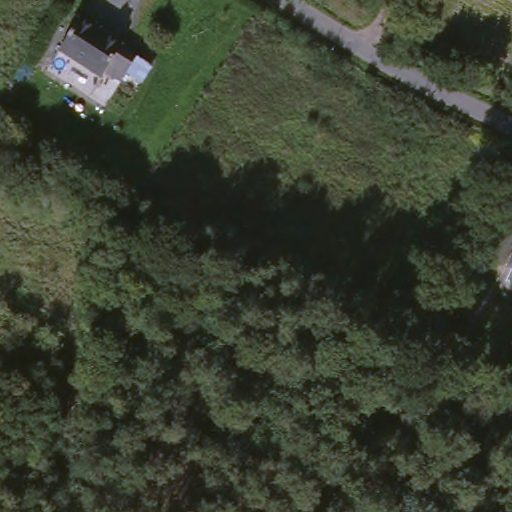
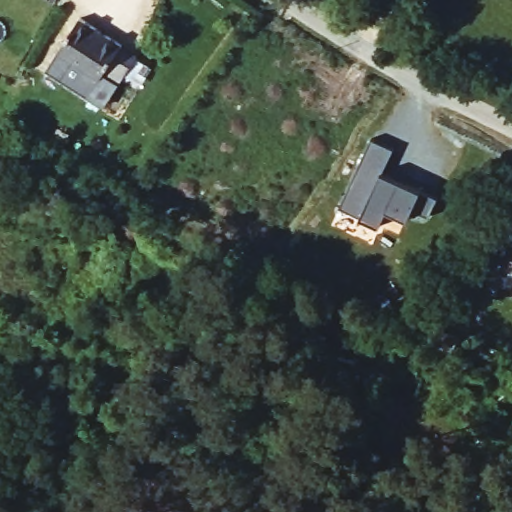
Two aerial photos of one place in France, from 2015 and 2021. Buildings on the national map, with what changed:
unchanged [(129,39),(127,41),(143,51),(127,77),(111,67),(107,73),(64,45),(86,11),(129,39)]
new [(373,136),(395,146),(383,170),(394,175),(391,181),(398,185),(401,178),(438,196),(430,214),(413,206),(408,217),(388,207),(381,223),(341,204),(373,136)]
unchanged [(419,333),(425,323),(439,330),(440,328),(459,338),(451,351),(419,333)]

